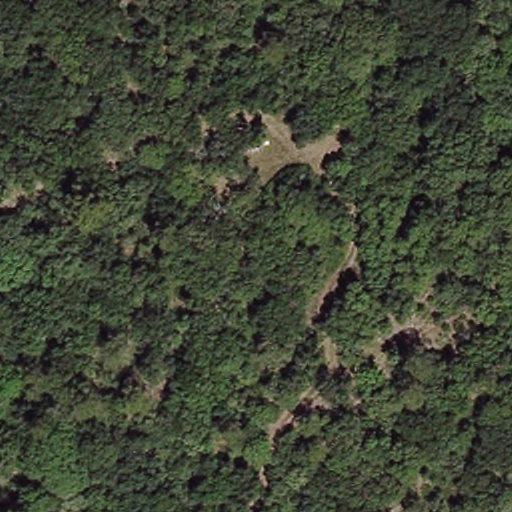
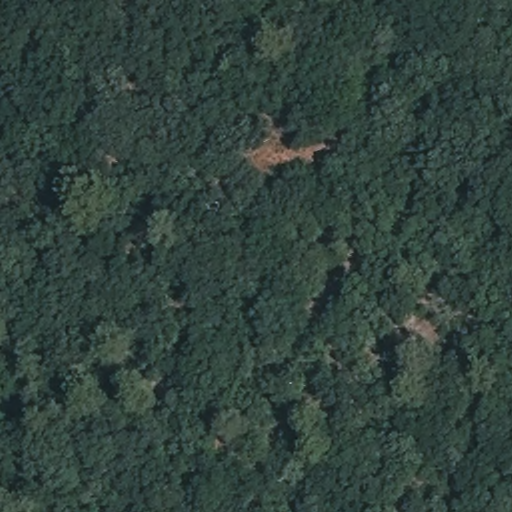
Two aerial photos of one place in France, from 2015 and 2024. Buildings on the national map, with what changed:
unchanged [(267,128),(273,139),(253,153),(246,141),(267,128)]

